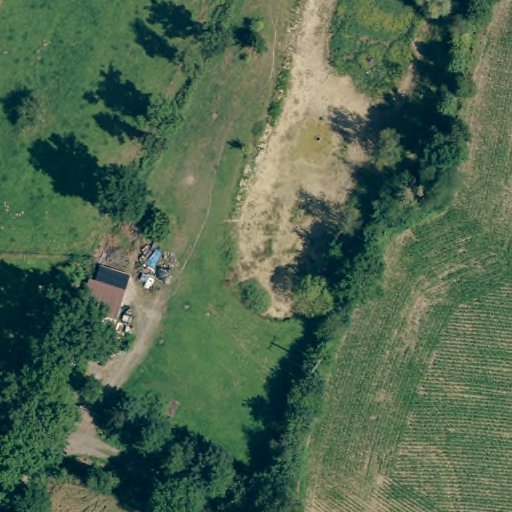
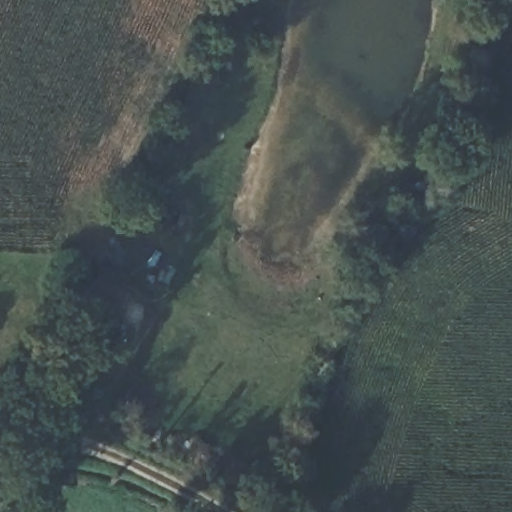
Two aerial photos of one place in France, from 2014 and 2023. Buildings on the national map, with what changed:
unchanged [(91,281),(124,293),(117,320),(81,310),(91,281)]
unchanged [(66,351),(80,309),(81,310),(117,320),(103,363),(66,351)]

